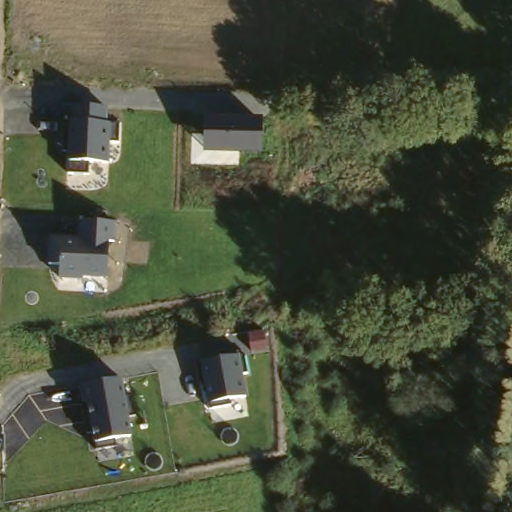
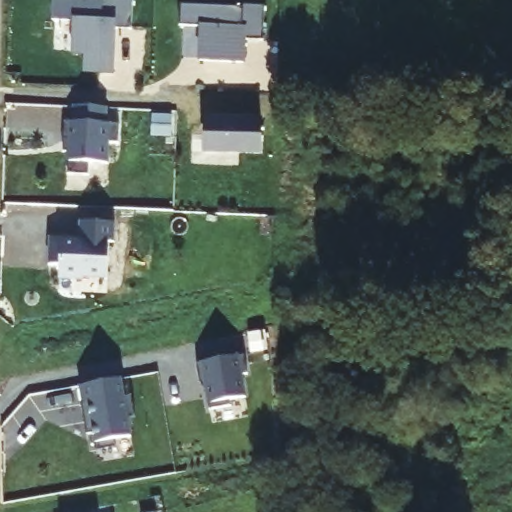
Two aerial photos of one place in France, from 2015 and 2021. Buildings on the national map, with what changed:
new [(131,30),(116,29),(114,76),(85,75),(86,56),(72,55),(73,22),(51,21),(52,0),(109,0),(133,1),(131,30)]
new [(179,6),(242,8),(242,5),(264,6),(263,41),(244,40),(244,64),(199,62),(201,28),(179,28),(179,6)]
unchanged [(107,108),(105,123),(118,124),(117,145),(110,144),(109,163),(89,161),(88,175),(66,174),(66,153),(63,152),(65,121),(68,121),(70,106),(107,108)]
unchanged [(261,154),(201,155),(203,118),(263,118),(261,154)]
unchanged [(117,222),(116,241),(109,241),(107,281),(82,279),(81,281),(58,280),(59,265),(46,265),(47,238),(76,237),(78,220),(117,222)]
unchanged [(246,398),(229,401),(229,406),(207,410),(198,363),(239,356),(246,398)]
unchanged [(130,437),(113,440),(115,447),(93,450),(90,433),(86,433),(79,387),(121,379),(130,437)]

